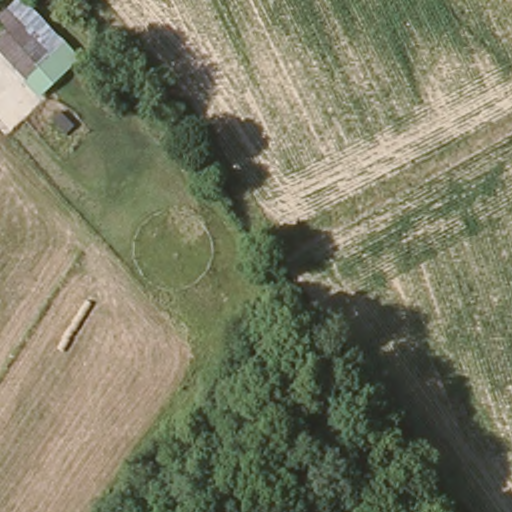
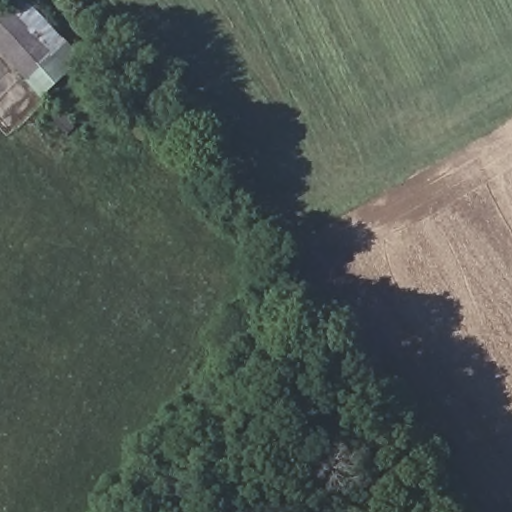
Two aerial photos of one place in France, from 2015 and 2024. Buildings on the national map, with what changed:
unchanged [(23,0),(62,40),(28,80),(0,51),(0,20),(20,0),(23,0)]

